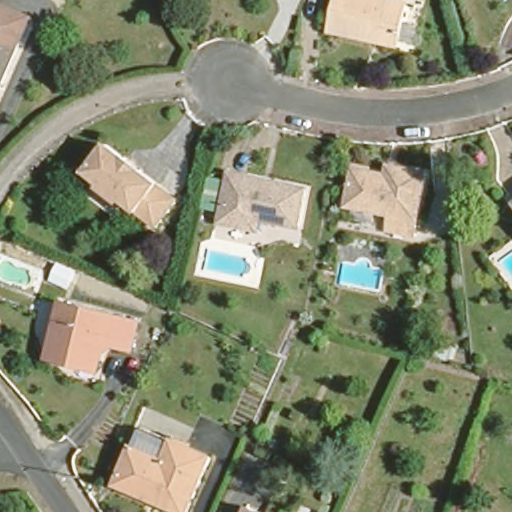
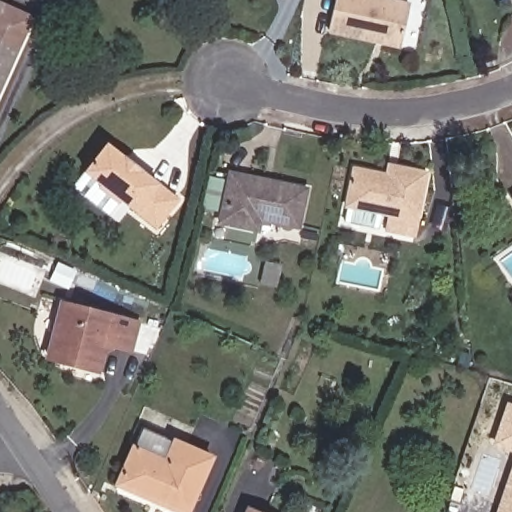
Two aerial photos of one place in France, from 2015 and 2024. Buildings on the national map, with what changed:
unchanged [(0,68),(0,0),(2,0),(25,11),(0,68)]
unchanged [(405,3),(398,37),(377,33),(376,41),(326,31),(332,0),(389,0),(405,3)]
unchanged [(119,160),(132,170),(136,165),(173,196),(151,222),(115,192),(111,197),(98,187),(101,182),(83,167),(105,142),(122,156),(119,160)]
unchanged [(408,237),(383,232),(387,216),(340,207),(348,171),(376,177),(379,167),(391,170),(422,177),(408,237)]
unchanged [(259,181),(271,184),(272,179),(304,185),(296,224),(258,217),(256,226),(216,219),(225,171),(260,177),(259,181)]
unchanged [(511,194),(512,193),(512,195),(511,194)]
unchanged [(132,349),(116,345),(96,348),(93,367),(66,362),(61,353),(52,351),(63,303),(139,321),(132,349)]
new [(491,446),(506,402),(512,404),(512,453),(491,446)]
unchanged [(141,432),(208,455),(188,512),(185,512),(164,505),(149,500),(120,490),(141,432)]
new [(495,512),(512,463),(512,512),(495,512)]
unchanged [(272,512),(240,512),(243,503),(272,512)]

